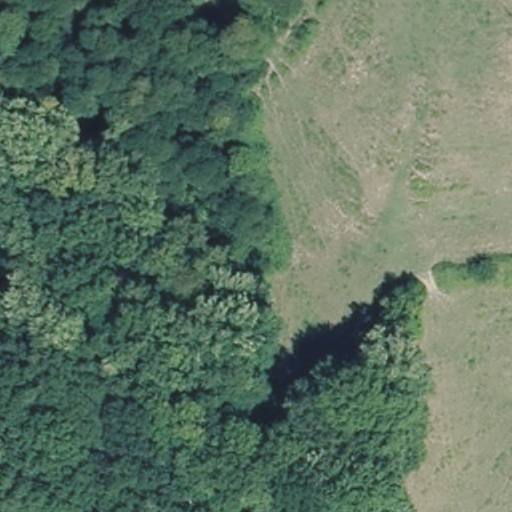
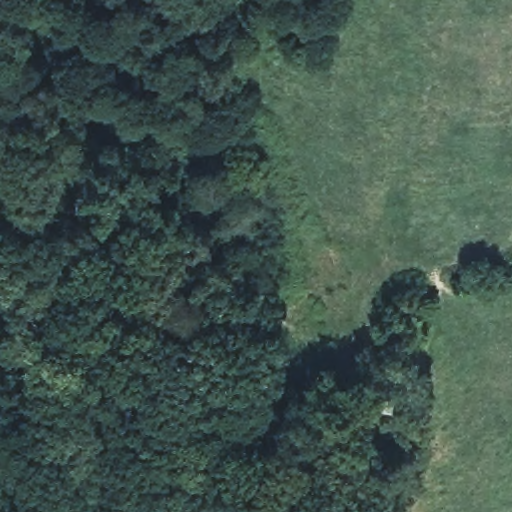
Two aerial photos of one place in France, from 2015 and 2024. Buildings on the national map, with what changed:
[]

